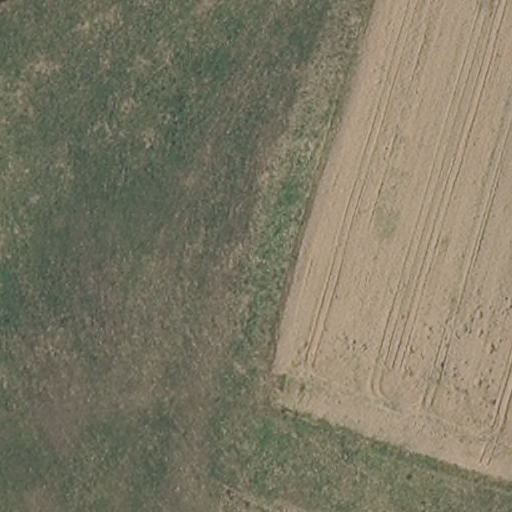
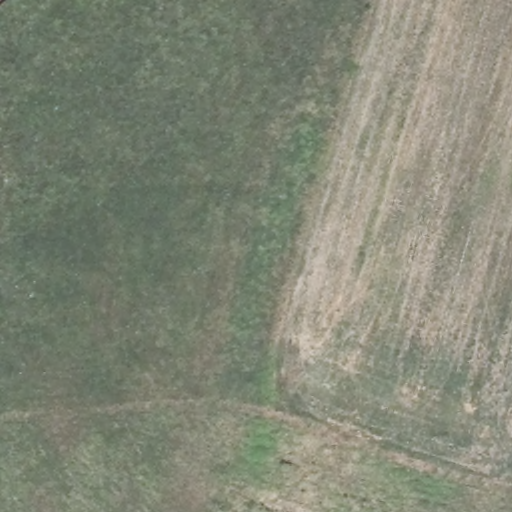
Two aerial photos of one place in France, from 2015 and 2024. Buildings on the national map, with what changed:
[]

